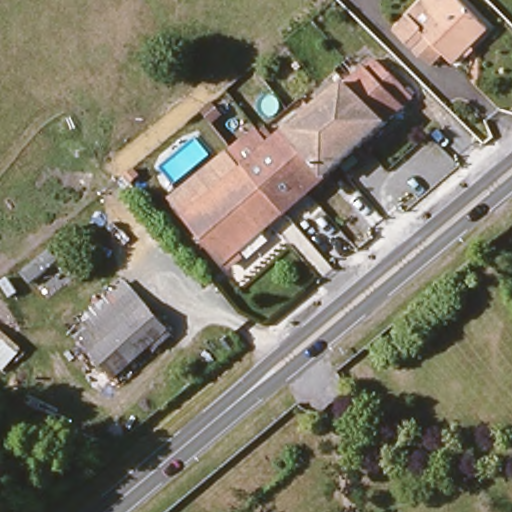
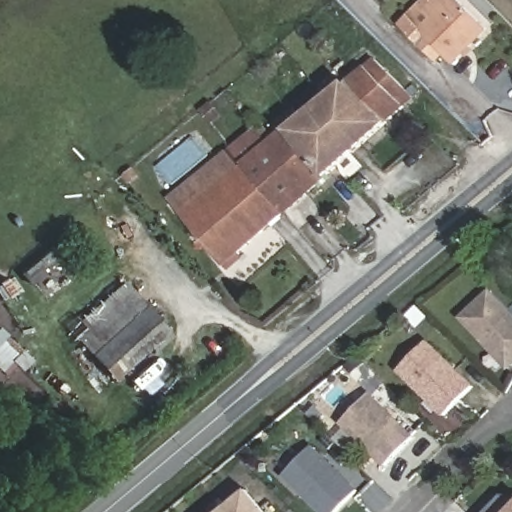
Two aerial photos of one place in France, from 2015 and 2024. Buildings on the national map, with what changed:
unchanged [(483,32),(449,64),(432,48),(419,59),(392,32),(426,0),(440,13),(452,0),(483,32)]
unchanged [(409,100),(222,265),(181,216),(371,62),(409,100)]
new [(492,288),(512,311),(512,369),(510,371),(459,318),(492,288)]
unchanged [(84,337),(135,293),(154,314),(167,329),(116,374),(102,358),(84,337)]
unchanged [(8,359),(0,352),(0,332),(18,349),(8,359)]
new [(426,342),(472,387),(443,416),(398,371),(426,342)]
new [(386,467),(341,423),(372,393),(417,436),(386,467)]
new [(337,512),(320,512),(285,476),(317,445),(360,489),(337,512)]
new [(229,505),(250,488),(269,512),(234,512),(229,505)]
new [(502,494),(512,495),(512,512),(486,512),(502,494)]
new [(229,505),(234,512),(221,512),(229,505)]

